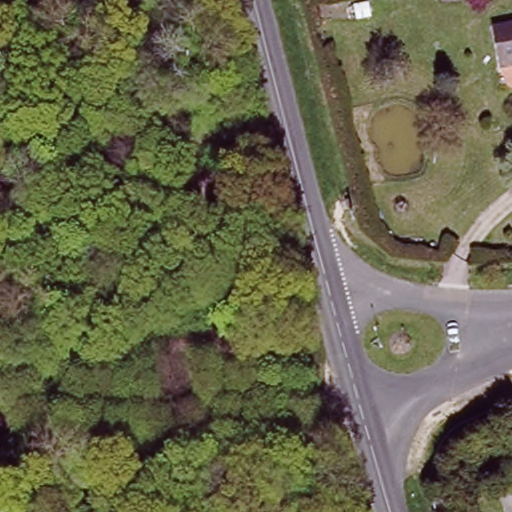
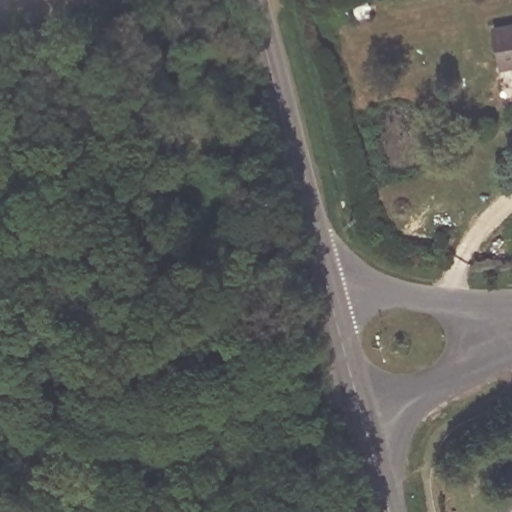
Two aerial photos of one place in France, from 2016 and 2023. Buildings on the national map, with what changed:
unchanged [(512,27),(512,67),(499,69),(493,30),(512,27)]

